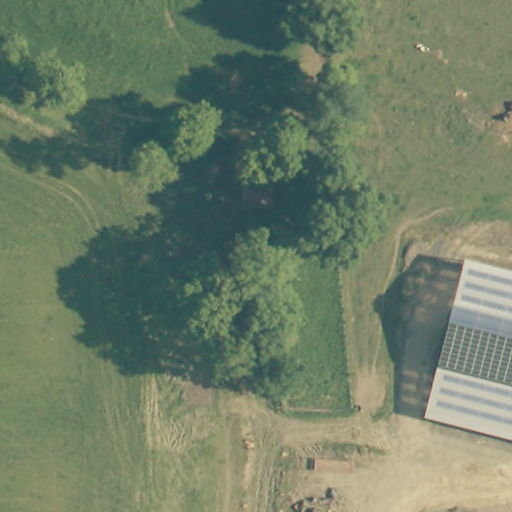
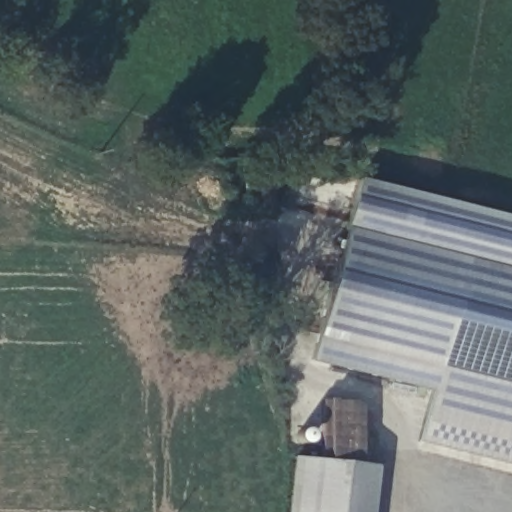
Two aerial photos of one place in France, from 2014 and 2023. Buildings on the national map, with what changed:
demolished [(246,204),(246,207),(210,206),(210,157),(247,157),(247,175),(246,204)]
unchanged [(271,204),(246,204),(247,175),(271,174),(271,204)]
new [(467,261),(428,393),(311,361),(357,179),(512,218),(512,272),(467,261)]
unchanged [(413,442),(467,261),(512,272),(512,463),(413,442)]
new [(287,512),(293,457),(377,466),(372,512),(287,512)]

